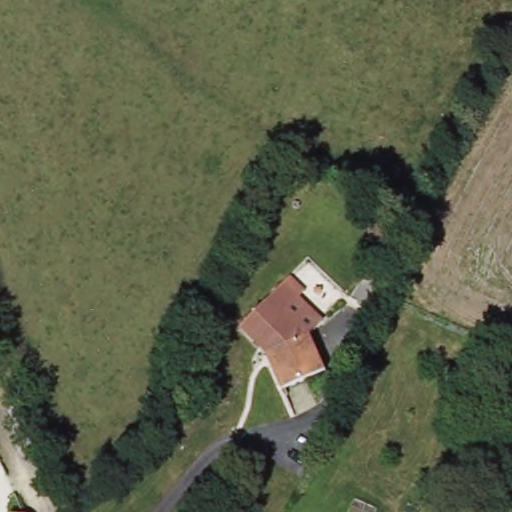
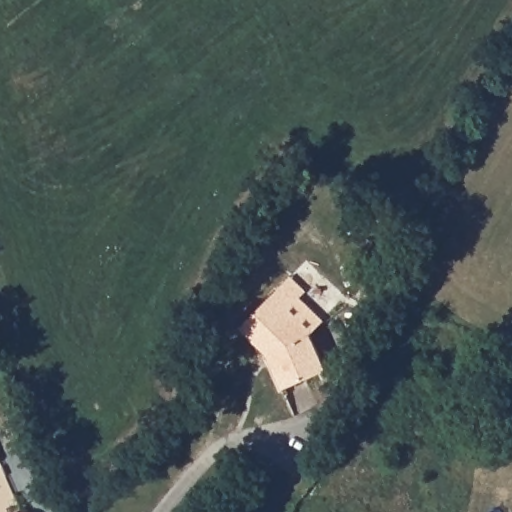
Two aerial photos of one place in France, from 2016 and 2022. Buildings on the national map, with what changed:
unchanged [(326,371),(282,390),(267,356),(240,328),(285,283),(290,276),(307,291),(300,298),(324,320),(310,334),(326,371)]
unchanged [(393,286),(381,310),(371,305),(382,281),(393,286)]

